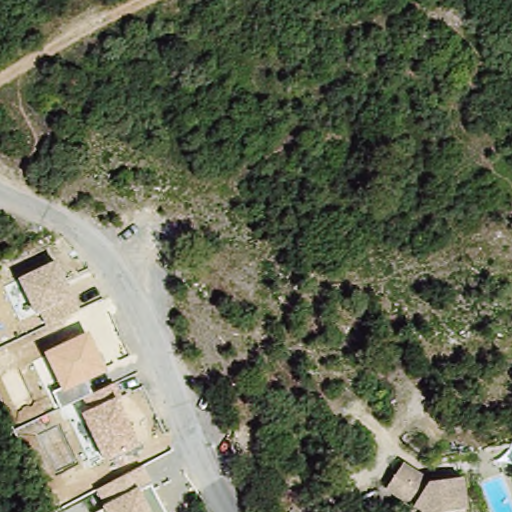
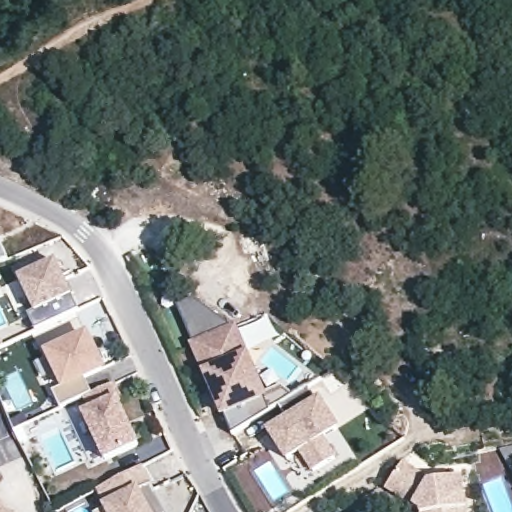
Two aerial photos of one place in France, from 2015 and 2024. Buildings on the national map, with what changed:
new [(0,258),(0,250),(3,257),(0,258)]
unchanged [(73,294),(76,293),(83,308),(49,327),(41,313),(36,315),(18,278),(57,259),(73,294)]
new [(190,295),(236,327),(265,413),(227,438),(174,301),(190,295)]
unchanged [(125,397),(119,400),(141,443),(106,462),(82,413),(90,409),(84,397),(63,407),(55,392),(63,389),(45,354),(90,332),(108,370),(87,381),(93,393),(116,382),(125,397)]
new [(288,420),(278,405),(308,386),(317,400),(319,399),(338,426),(322,436),(336,456),(315,471),(301,450),(288,459),(276,441),(270,432),(275,429),(288,420)]
unchanged [(97,512),(104,508),(102,505),(105,503),(98,491),(146,465),(167,512),(97,512)]
unchanged [(413,512),(385,490),(403,465),(430,485),(460,477),(465,512),(413,512)]

